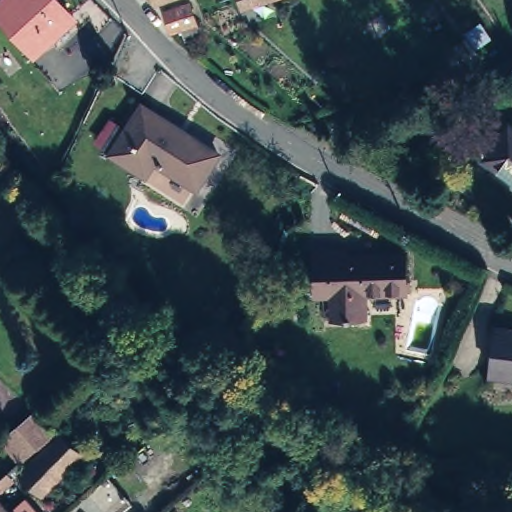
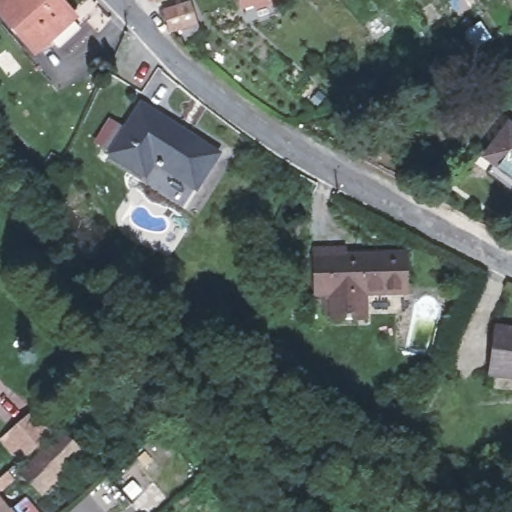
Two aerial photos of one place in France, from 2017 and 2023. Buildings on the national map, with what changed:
unchanged [(11,0),(74,0),(40,32),(11,0)]
unchanged [(239,0),(273,0),(243,10),(239,0)]
unchanged [(196,1),(201,20),(175,28),(169,9),(196,1)]
unchanged [(141,102),(216,151),(196,184),(153,159),(145,172),(111,150),(141,102)]
unchanged [(498,166),(491,159),(498,149),(512,129),(512,175),(498,166)]
unchanged [(349,246),(349,253),(409,251),(409,289),(369,290),(371,314),(336,313),(337,291),(321,291),(320,247),(349,246)]
unchanged [(512,330),(512,377),(499,376),(504,329),(512,330)]
unchanged [(51,417),(26,441),(8,419),(31,398),(51,417)]
unchanged [(67,453),(58,460),(69,471),(49,492),(14,462),(55,418),(79,439),(67,453)]
unchanged [(0,443),(3,440),(14,451),(3,461),(0,457),(0,443)]
unchanged [(76,465),(88,477),(83,482),(71,470),(76,465)]
unchanged [(0,496),(13,512),(0,512),(0,496)]

